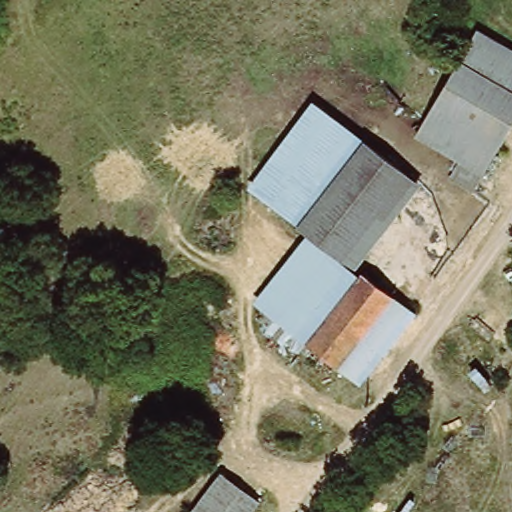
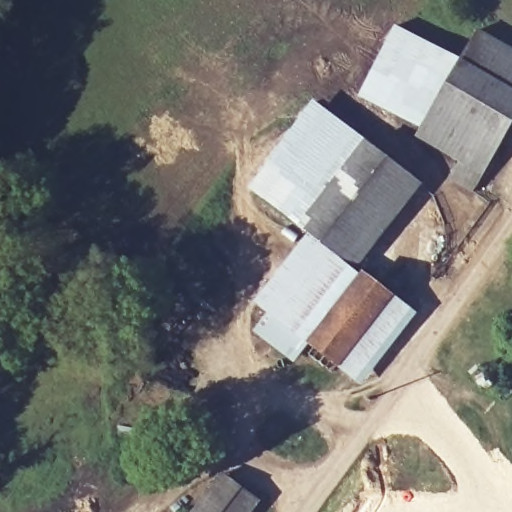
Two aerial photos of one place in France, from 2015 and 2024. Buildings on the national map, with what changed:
new [(393,26),(467,63),(464,67),(424,129),(357,97),(393,26)]
unchanged [(512,53),(512,96),(464,67),(484,36),(512,53)]
unchanged [(471,193),(450,180),(461,163),(419,137),(464,67),(512,96),(512,127),(471,193)]
unchanged [(364,139),(296,227),(248,191),(314,100),(364,139)]
unchanged [(414,188),(354,271),(301,233),(359,150),(414,188)]
unchanged [(254,302),(301,233),(354,271),(361,276),(313,345),(254,302)]
unchanged [(313,345),(361,276),(393,300),(344,368),(313,345)]
unchanged [(408,312),(360,379),(344,368),(393,300),(408,312)]
unchanged [(188,512),(217,473),(251,497),(240,512),(188,512)]

